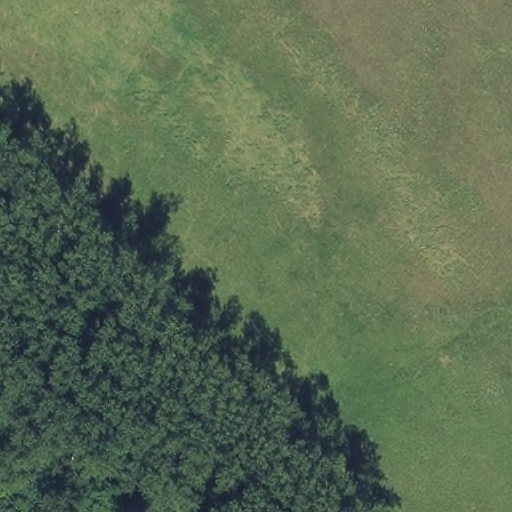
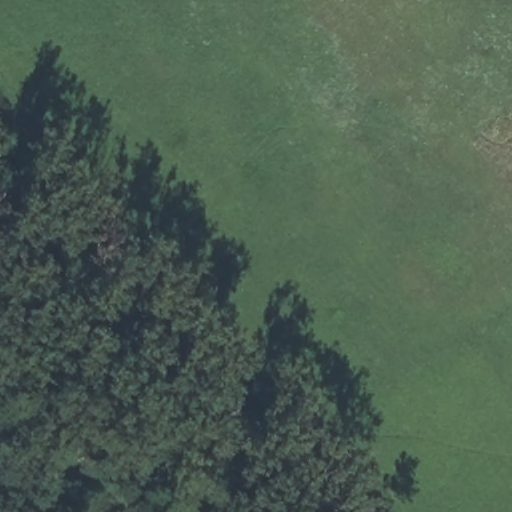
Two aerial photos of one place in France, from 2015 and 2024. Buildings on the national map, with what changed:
[]

